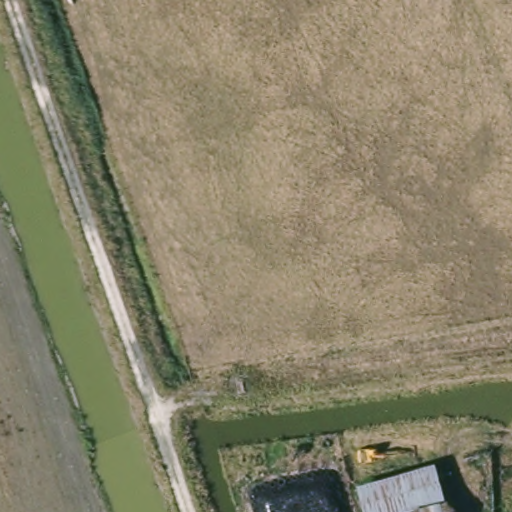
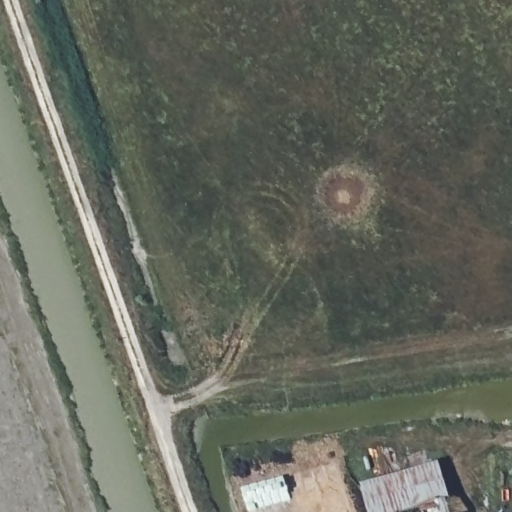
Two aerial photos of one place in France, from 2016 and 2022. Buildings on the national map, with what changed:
unchanged [(356,486),(437,459),(449,498),(443,499),(448,512),(364,512),(356,486)]

